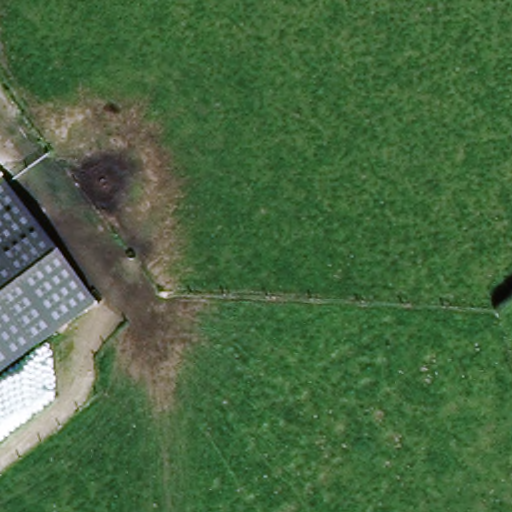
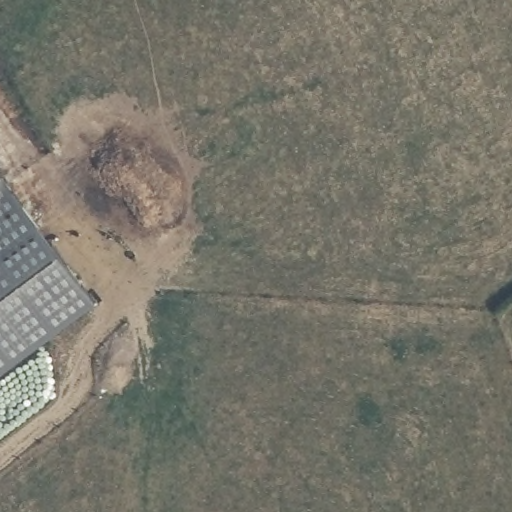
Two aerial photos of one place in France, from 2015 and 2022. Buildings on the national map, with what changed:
unchanged [(1,179),(0,181),(0,177),(1,179)]
unchanged [(1,179),(93,304),(0,371),(0,181),(1,179)]

